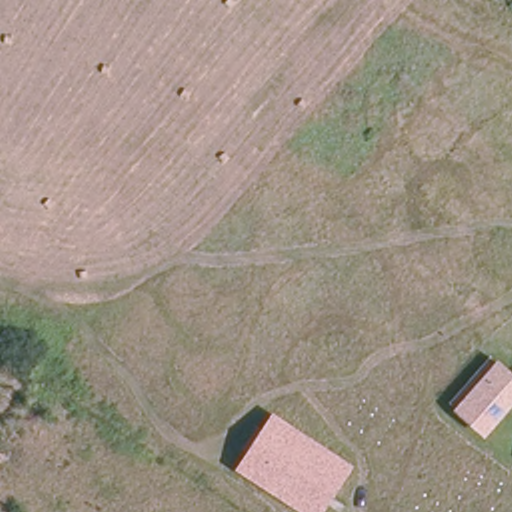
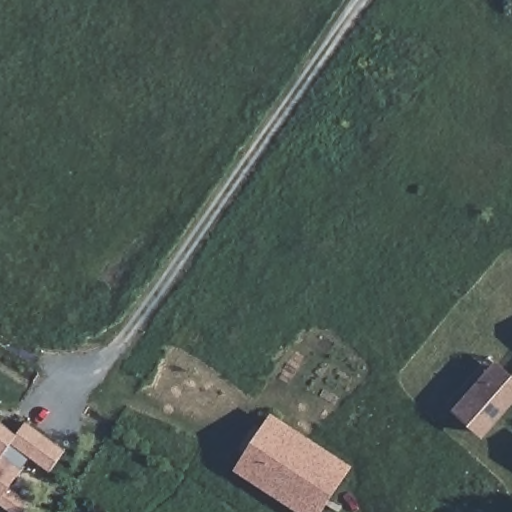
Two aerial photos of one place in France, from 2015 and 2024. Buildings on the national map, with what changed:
unchanged [(484,439),(451,410),(497,359),(512,373),(512,408),(484,439)]
unchanged [(299,512),(234,470),(272,411),(355,464),(324,512),(299,512)]
new [(11,485),(30,500),(22,512),(10,512),(0,505),(0,418),(20,433),(29,422),(66,449),(50,472),(31,458),(11,485)]

